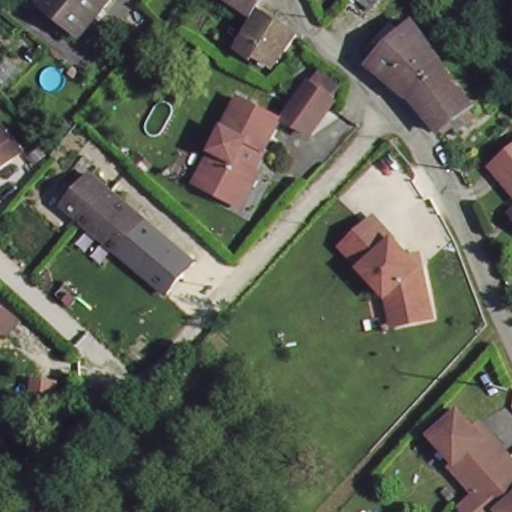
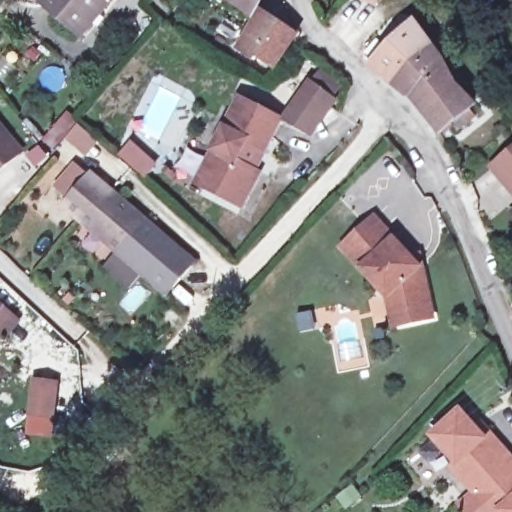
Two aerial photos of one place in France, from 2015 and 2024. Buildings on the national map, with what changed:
unchanged [(42,11),(51,0),(117,0),(78,44),(42,11)]
unchanged [(246,20),(244,20),(219,0),(261,0),(246,20)]
unchanged [(257,14),(261,18),(290,45),(268,71),(250,57),(246,60),(231,46),(257,14)]
unchanged [(398,96),(376,73),(379,69),(392,50),(402,33),(414,23),(438,63),(408,87),(404,91),(398,96)]
unchanged [(452,135),(446,127),(440,131),(436,126),(429,117),(424,112),(404,91),(408,87),(438,63),(469,111),(461,116),(468,125),(452,135)]
unchanged [(303,77),(328,90),(309,127),(284,113),(303,77)]
unchanged [(217,142),(236,105),(243,93),(283,115),(273,137),(264,153),(259,150),(253,161),(261,166),(244,200),(211,181),(201,175),(217,142)]
unchanged [(0,163),(0,122),(20,148),(0,163)]
unchanged [(491,174),(512,155),(512,200),(491,174)]
unchanged [(166,300),(58,210),(91,172),(198,263),(166,300)]
unchanged [(420,269),(422,269),(434,319),(397,327),(390,297),(345,249),(375,220),(420,269)]
unchanged [(0,330),(0,305),(13,316),(0,330)]
new [(60,381),(53,438),(25,435),(33,378),(60,381)]
unchanged [(455,413),(480,439),(485,434),(507,457),(482,483),(473,492),(451,469),(455,465),(429,439),(455,413)]
unchanged [(507,457),(512,462),(512,512),(501,512),(500,510),(498,512),(492,512),(473,492),(482,483),(507,457)]

